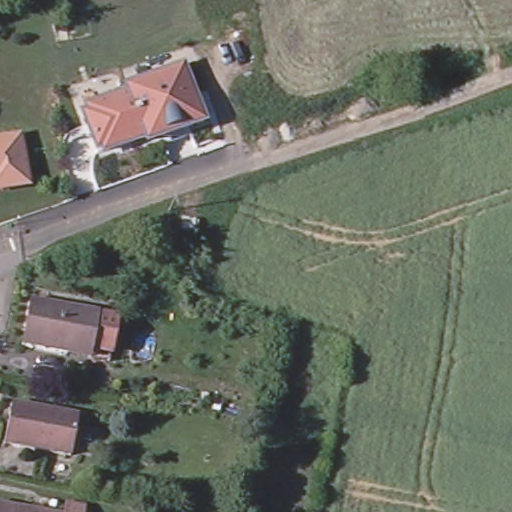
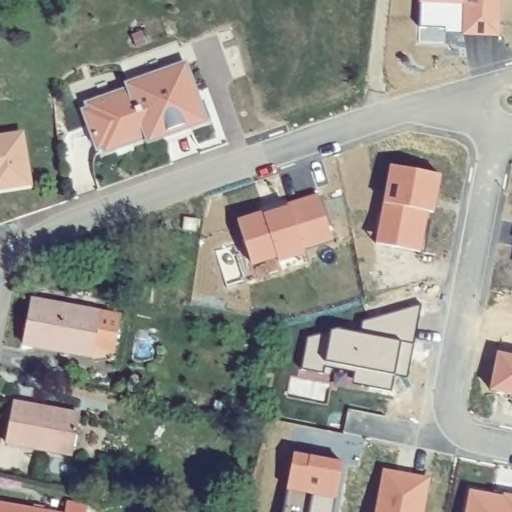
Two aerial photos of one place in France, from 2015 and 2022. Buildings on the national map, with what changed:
new [(464,33),(445,33),(445,30),(420,28),(421,0),(500,0),(500,34),(464,33)]
unchanged [(89,110),(87,105),(129,90),(127,85),(185,65),(205,122),(148,142),(147,138),(104,153),(102,148),(97,149),(84,112),(89,110)]
unchanged [(33,188),(0,193),(0,142),(25,139),(33,188)]
new [(388,158),(437,167),(422,245),(373,236),(388,158)]
new [(317,196),(332,240),(302,248),(305,255),(279,262),(277,257),(252,264),(241,220),(317,196)]
unchanged [(193,213),(191,224),(179,223),(181,211),(193,213)]
unchanged [(20,349),(28,304),(92,316),(112,320),(105,366),(85,362),(67,359),(20,349)]
new [(337,330),(362,334),(365,323),(420,307),(409,379),(394,375),(392,392),(354,384),(355,374),(325,368),(322,372),(302,369),(307,339),(337,330)]
new [(495,346),(512,349),(512,386),(488,381),(495,346)]
unchanged [(73,460),(7,448),(14,408),(80,420),(73,460)]
unchanged [(114,457),(110,472),(101,470),(105,455),(114,457)]
new [(340,464),(333,512),(309,512),(313,492),(289,488),(295,456),(340,464)]
new [(385,473),(410,477),(410,475),(429,478),(423,512),(377,512),(385,473)]
new [(504,498),(504,495),(512,496),(512,512),(466,512),(470,491),(504,498)]
unchanged [(0,511),(4,512),(0,512),(0,511)]
unchanged [(67,511),(74,512),(67,512),(67,511)]

